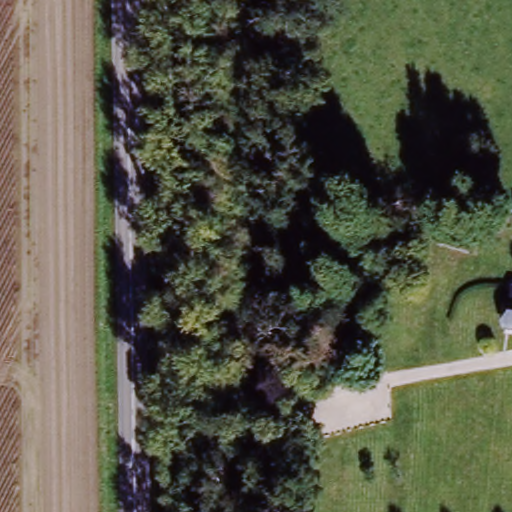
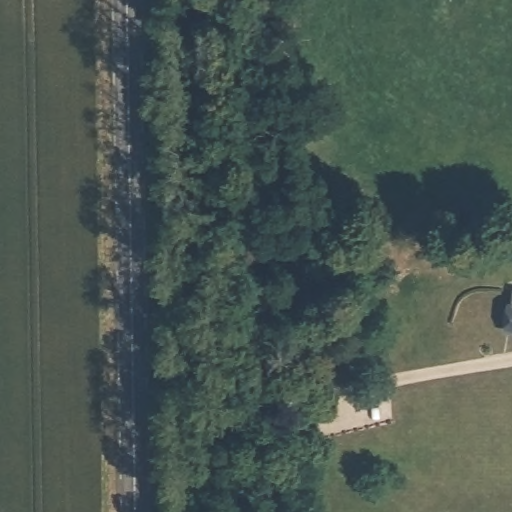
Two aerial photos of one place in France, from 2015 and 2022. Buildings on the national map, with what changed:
unchanged [(492,310),(495,296),(512,297),(512,339),(490,336),(492,310)]

